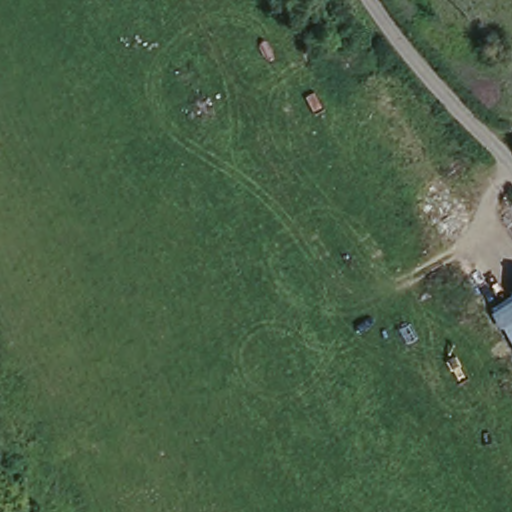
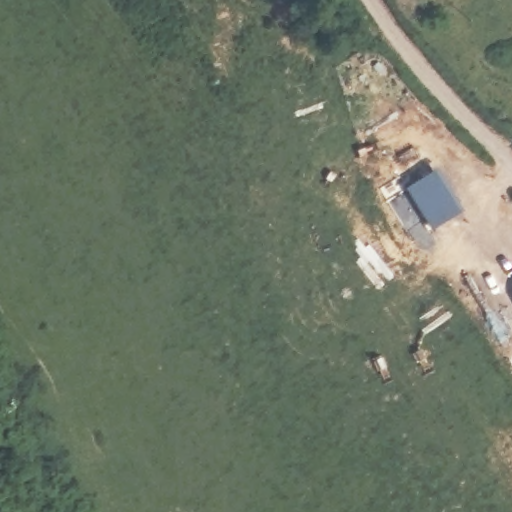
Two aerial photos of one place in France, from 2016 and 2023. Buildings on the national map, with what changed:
new [(433,173),(457,215),(429,232),(405,190),(433,173)]
unchanged [(492,312),(512,299),(512,347),(492,312)]

